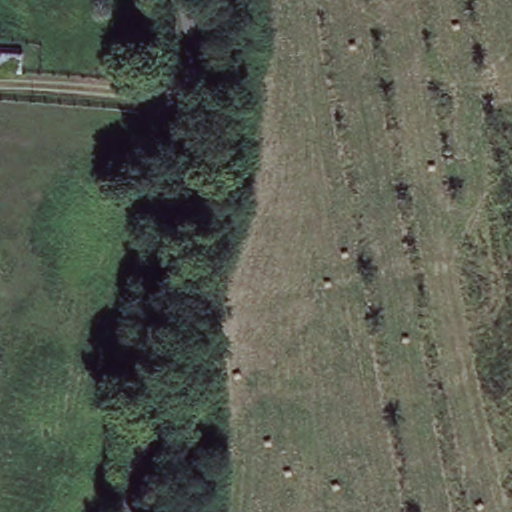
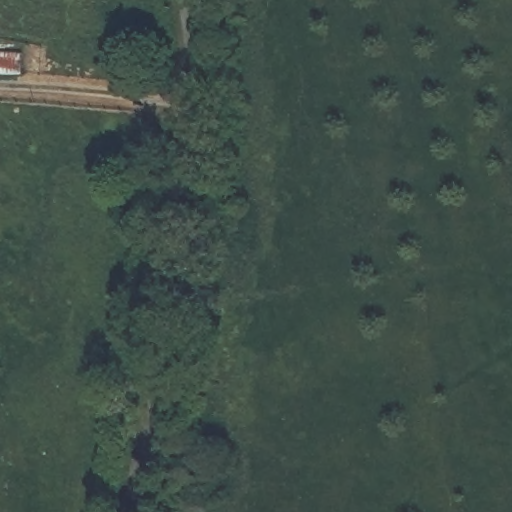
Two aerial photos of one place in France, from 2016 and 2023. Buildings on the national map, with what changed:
unchanged [(0,72),(0,49),(23,50),(22,73),(0,72)]

